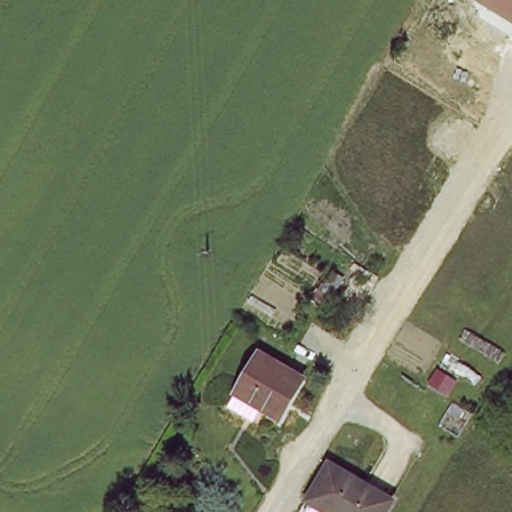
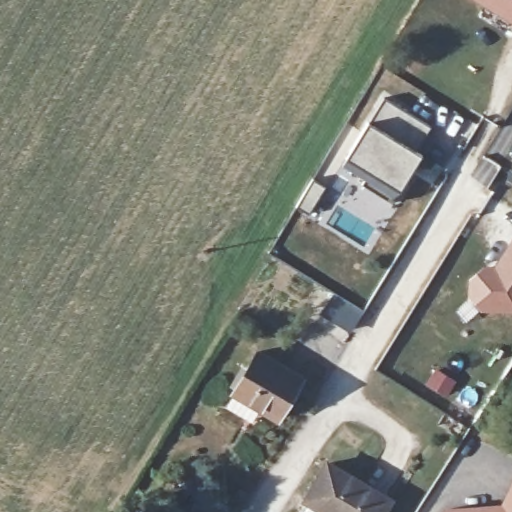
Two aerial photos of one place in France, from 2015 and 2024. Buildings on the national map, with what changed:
unchanged [(512,0),(512,23),(475,0),(512,0)]
new [(430,127),(415,151),(423,156),(403,192),(348,159),(387,99),(430,127)]
new [(484,314),(470,300),(470,280),(484,266),(497,267),(512,244),(512,314),(484,314)]
unchanged [(336,300),(331,310),(314,301),(323,284),(340,293),(336,300)]
unchanged [(233,403),(238,390),(261,349),(304,374),(281,416),(265,406),(258,418),(233,403)]
unchanged [(311,500),(331,466),(390,500),(383,512),(332,512),(311,500)]
new [(446,509),(504,504),(512,487),(512,512),(443,512),(446,509)]

